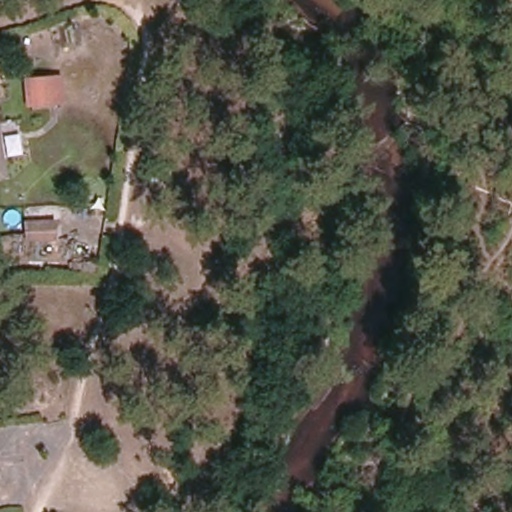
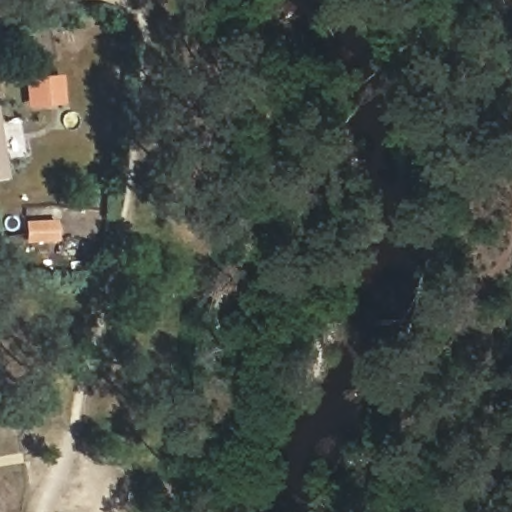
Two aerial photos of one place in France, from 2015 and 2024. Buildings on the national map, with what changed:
unchanged [(63,76),(63,103),(26,106),(25,80),(63,76)]
unchanged [(92,98),(107,99),(105,113),(91,111),(92,98)]

